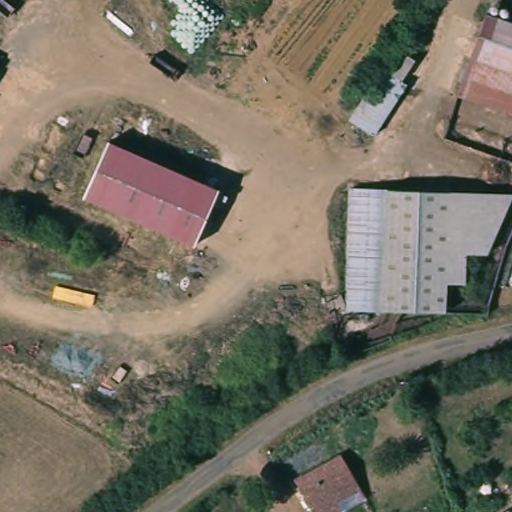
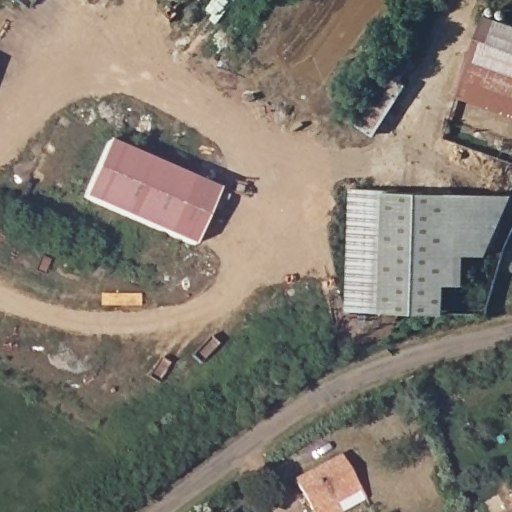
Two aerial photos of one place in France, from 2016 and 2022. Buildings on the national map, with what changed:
unchanged [(512,109),(450,86),(481,8),(512,20),(512,109)]
unchanged [(395,46),(413,57),(395,83),(403,87),(373,133),(345,121),(395,46)]
unchanged [(215,180),(197,238),(79,203),(97,145),(215,180)]
unchanged [(512,205),(488,250),(465,248),(465,283),(447,282),(446,312),(345,310),(350,188),(512,194),(512,205)]
unchanged [(343,454),(356,494),(305,512),(290,469),(343,454)]
unchanged [(512,497),(502,477),(512,473),(512,497)]
unchanged [(506,512),(491,512),(501,506),(506,512)]

